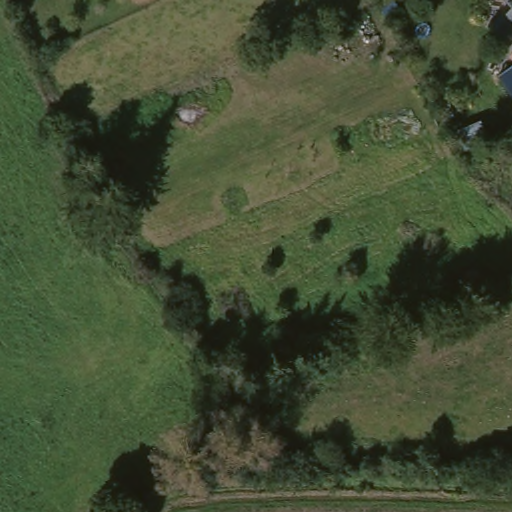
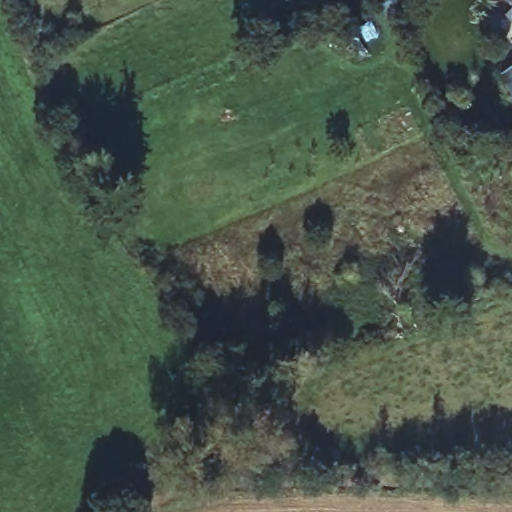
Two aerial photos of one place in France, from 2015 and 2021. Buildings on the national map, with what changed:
unchanged [(512,0),(512,16),(498,0),(512,0)]
unchanged [(512,67),(512,90),(502,74),(512,67)]

